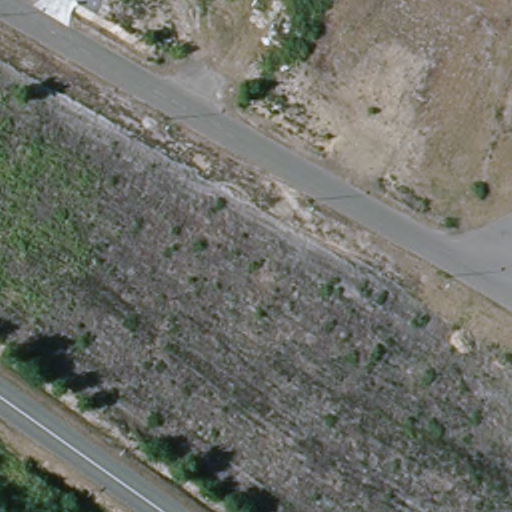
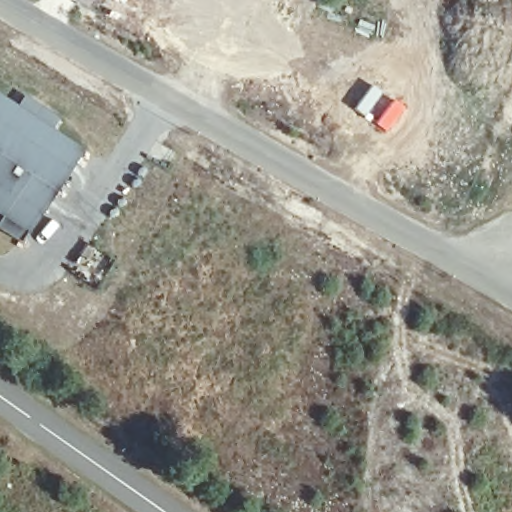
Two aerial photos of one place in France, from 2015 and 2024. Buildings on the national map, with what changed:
new [(16,104),(25,92),(60,114),(50,125),(84,147),(21,241),(0,228),(0,221),(4,215),(0,212),(0,93),(16,104)]

